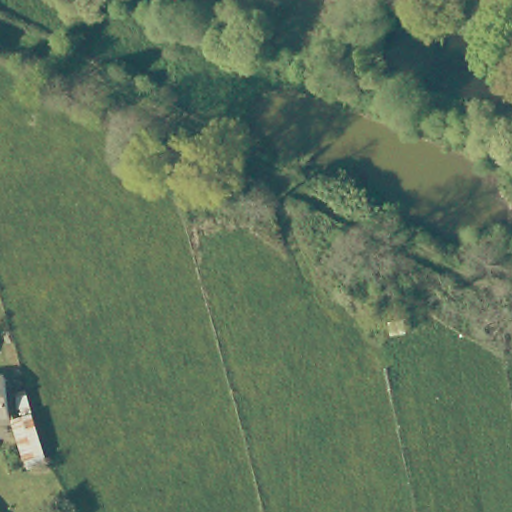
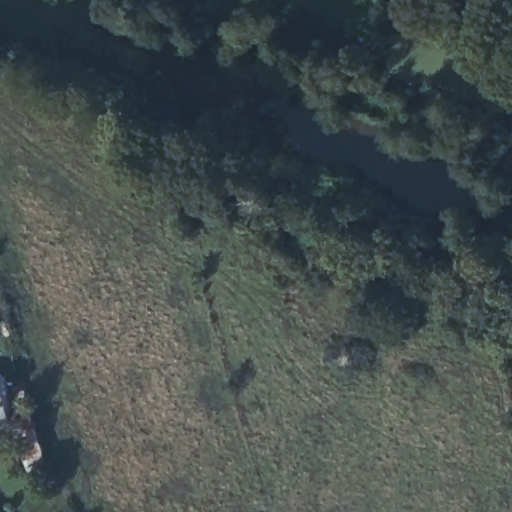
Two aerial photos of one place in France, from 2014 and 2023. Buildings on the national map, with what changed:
unchanged [(9,395),(14,414),(0,417),(0,378),(5,377),(9,395)]
unchanged [(30,389),(47,455),(27,461),(14,414),(9,395),(30,389)]

